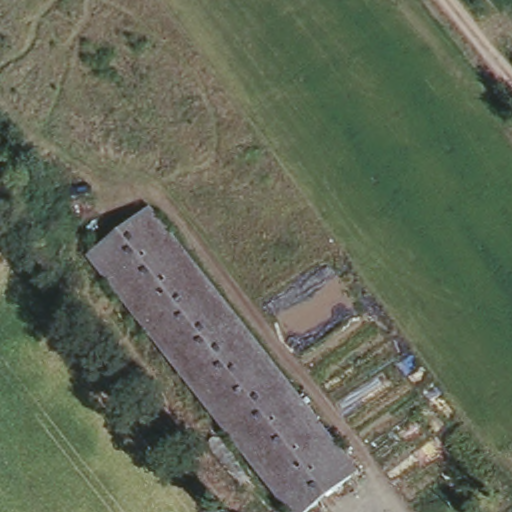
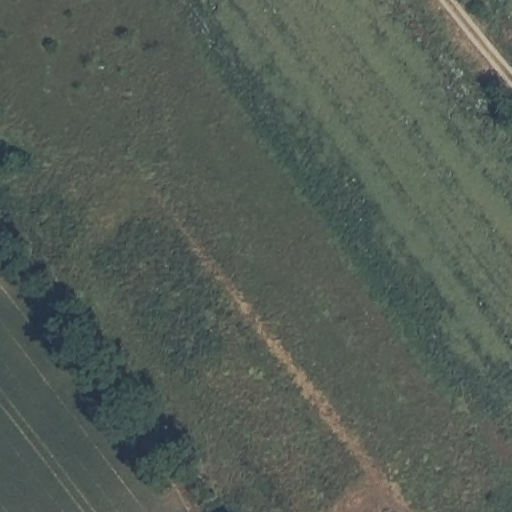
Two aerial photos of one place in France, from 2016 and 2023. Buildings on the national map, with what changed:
demolished [(312,512),(290,512),(89,255),(151,206),(363,474),(312,512)]

